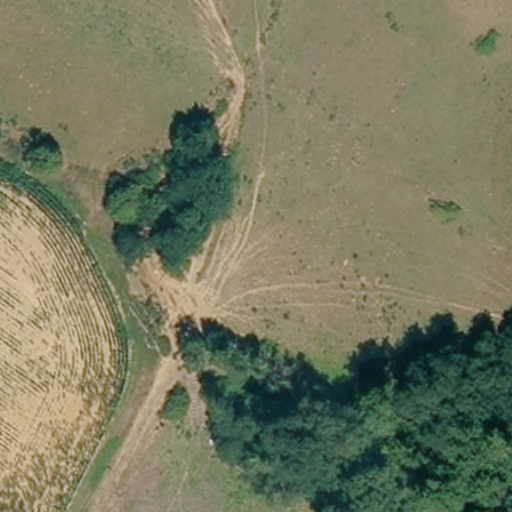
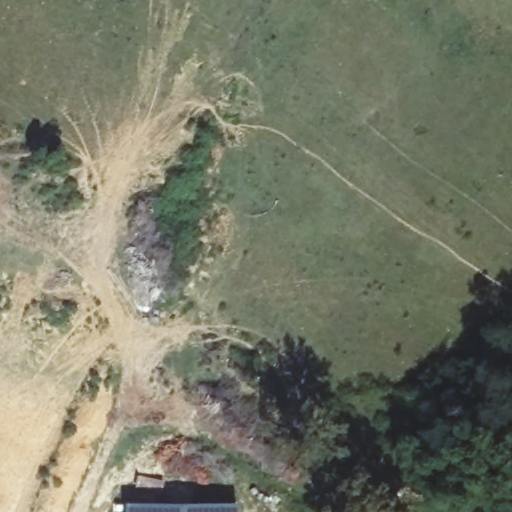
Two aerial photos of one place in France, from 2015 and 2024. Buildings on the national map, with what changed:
new [(237,500),(237,512),(124,512),(124,499),(237,500)]

